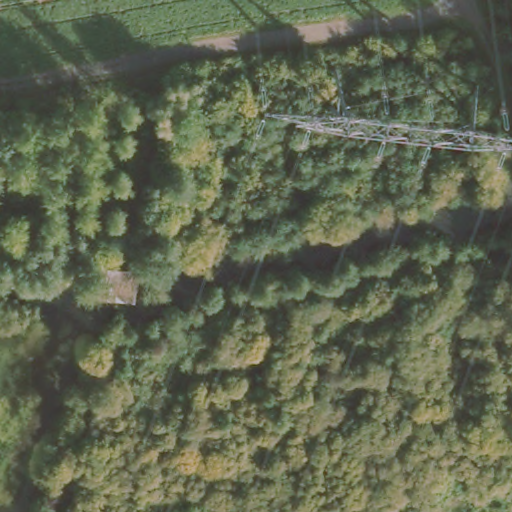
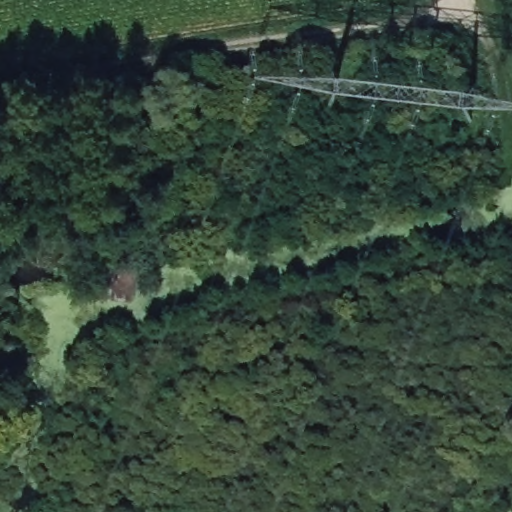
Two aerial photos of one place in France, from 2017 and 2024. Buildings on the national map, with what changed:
unchanged [(133,269),(130,297),(83,292),(86,263),(133,269)]

